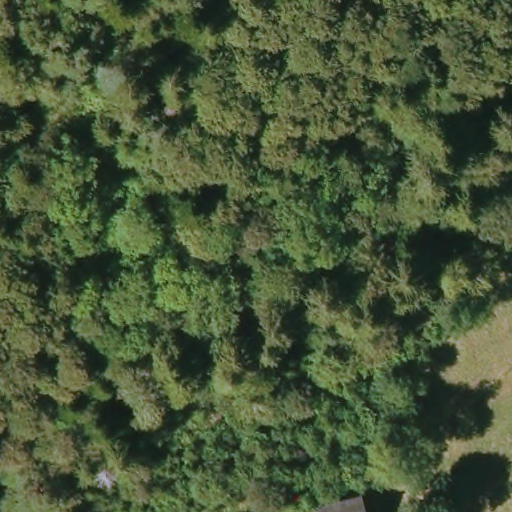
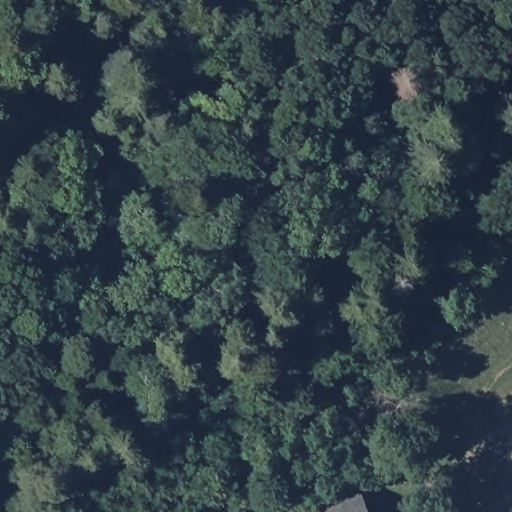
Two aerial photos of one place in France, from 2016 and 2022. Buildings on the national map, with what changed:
unchanged [(295,512),(356,492),(362,512),(295,512)]

